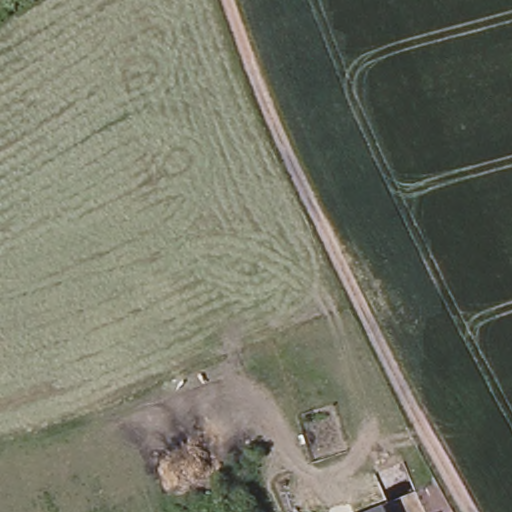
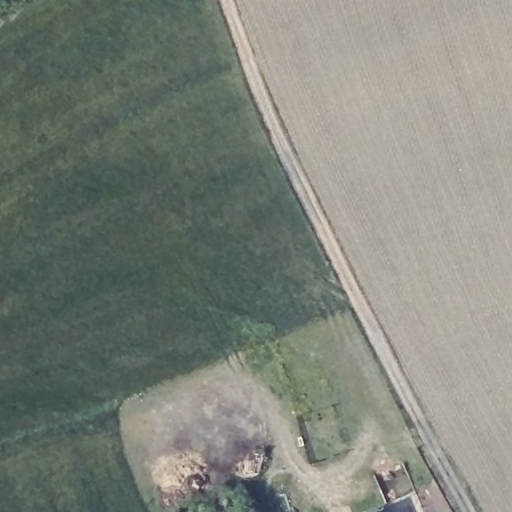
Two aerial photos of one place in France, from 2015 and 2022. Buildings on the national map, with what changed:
unchanged [(384,512),(363,512),(381,504),(384,512)]

